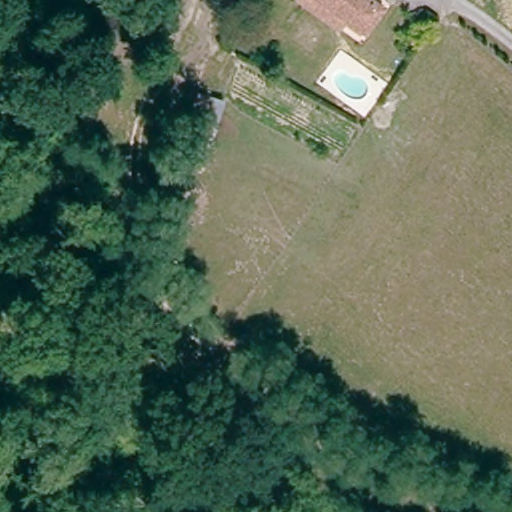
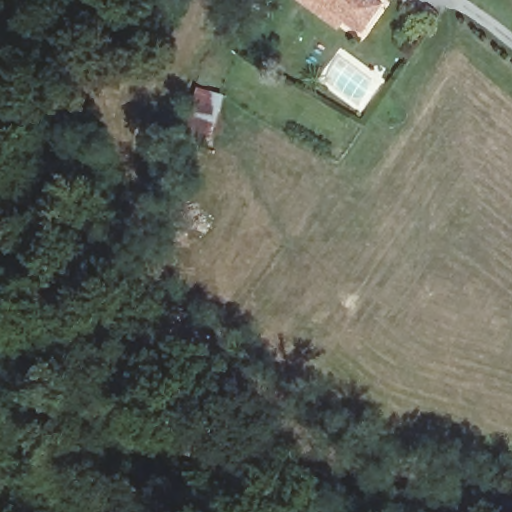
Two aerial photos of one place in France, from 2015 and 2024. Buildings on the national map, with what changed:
unchanged [(372,22),(343,0),(387,0),(372,22)]

